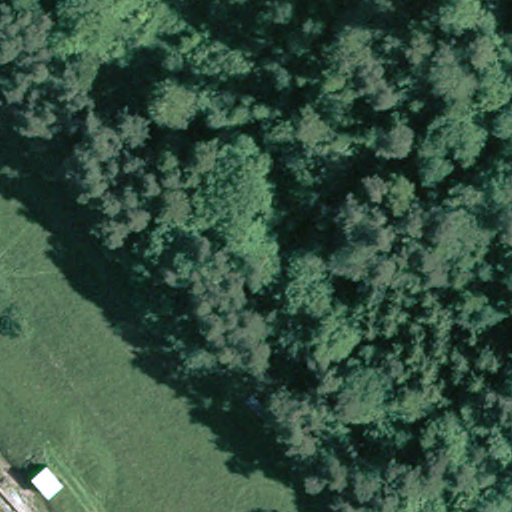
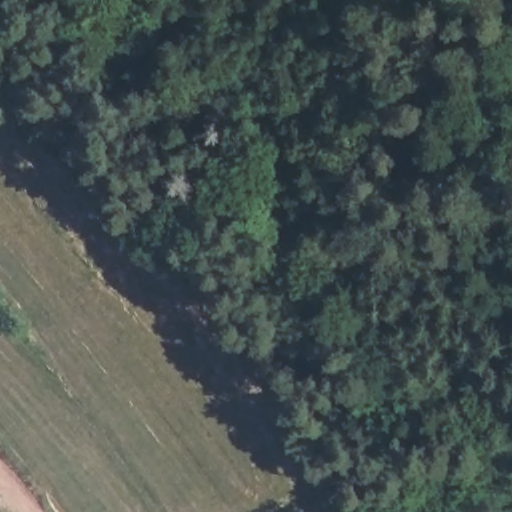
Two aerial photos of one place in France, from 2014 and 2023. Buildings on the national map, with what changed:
unchanged [(16,512),(0,512),(0,493),(16,512)]

